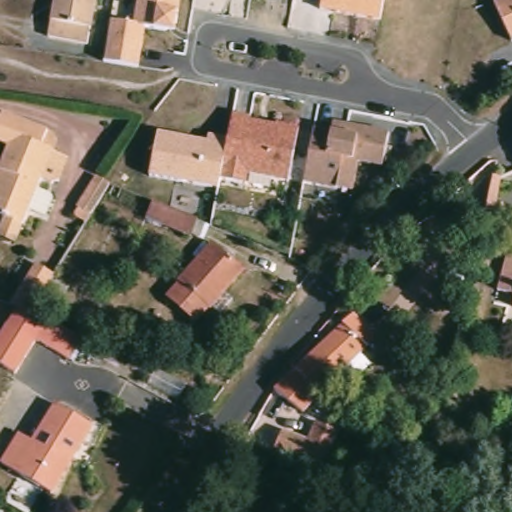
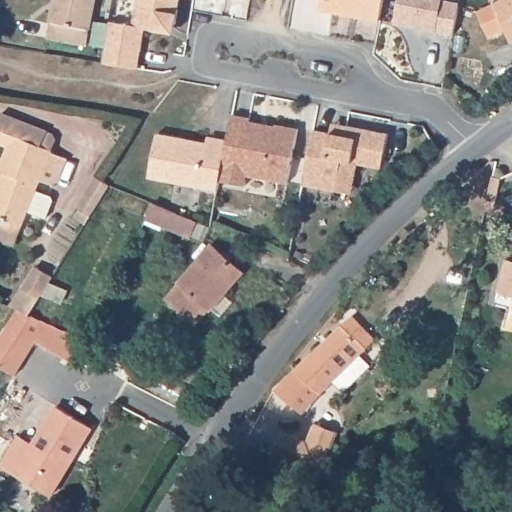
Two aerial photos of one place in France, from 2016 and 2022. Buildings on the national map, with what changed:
unchanged [(87,51),(47,44),(56,0),(97,0),(87,51)]
unchanged [(180,10),(177,32),(155,30),(147,30),(141,68),(105,63),(111,18),(135,22),(138,0),(181,0),(180,10)]
unchanged [(322,0),(386,0),(382,21),(321,9),(322,0)]
new [(398,0),(442,0),(441,5),(457,8),(451,40),(393,29),(398,0)]
unchanged [(499,0),(512,0),(512,39),(496,2),(499,0)]
unchanged [(232,114),(252,117),(252,122),(299,128),(290,182),(249,175),(248,182),(222,178),(229,136),(232,114)]
unchanged [(0,237),(0,227),(4,217),(0,216),(0,183),(1,179),(0,178),(0,151),(1,149),(0,149),(0,117),(39,131),(34,145),(50,151),(48,154),(64,159),(55,183),(49,186),(37,182),(35,187),(50,193),(51,197),(45,215),(27,209),(21,225),(15,243),(0,237)]
unchanged [(332,131),(333,122),(389,132),(385,166),(360,162),(355,192),(306,185),(315,129),(332,131)]
unchanged [(209,139),(210,133),(229,136),(222,178),(221,189),(152,179),(159,132),(209,139)]
unchanged [(104,180),(86,212),(75,205),(92,174),(104,180)]
unchanged [(140,199),(179,215),(172,229),(135,212),(140,199)]
unchanged [(244,271),(226,292),(240,303),(227,318),(215,308),(195,332),(162,306),(212,245),(244,271)]
unchanged [(25,262),(42,272),(30,293),(20,311),(8,307),(1,303),(25,262)]
unchanged [(503,262),(512,264),(512,300),(496,297),(503,262)]
unchanged [(66,360),(45,348),(33,343),(14,377),(0,369),(0,334),(15,311),(54,328),(78,337),(66,360)]
unchanged [(375,345),(297,415),(281,393),(357,325),(375,345)]
unchanged [(35,448),(58,410),(90,431),(49,498),(2,470),(20,439),(35,448)]
unchanged [(270,458),(279,436),(305,445),(312,427),(336,436),(333,444),(319,477),(270,458)]

